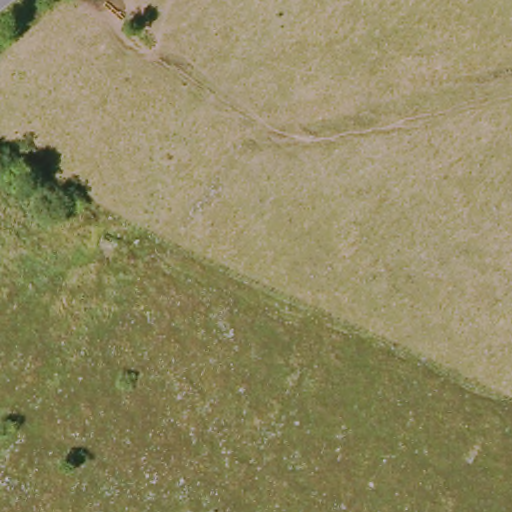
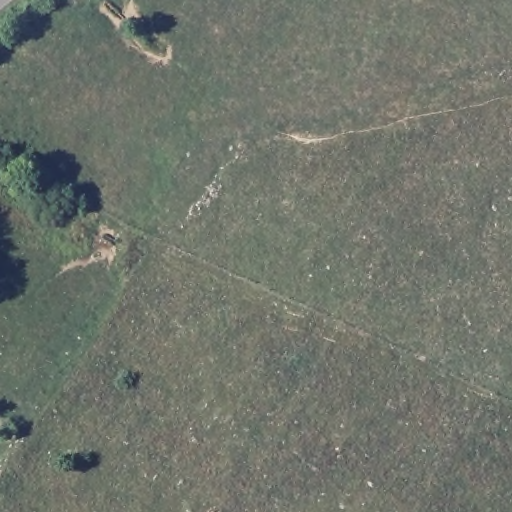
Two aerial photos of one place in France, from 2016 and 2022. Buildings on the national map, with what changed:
[]

